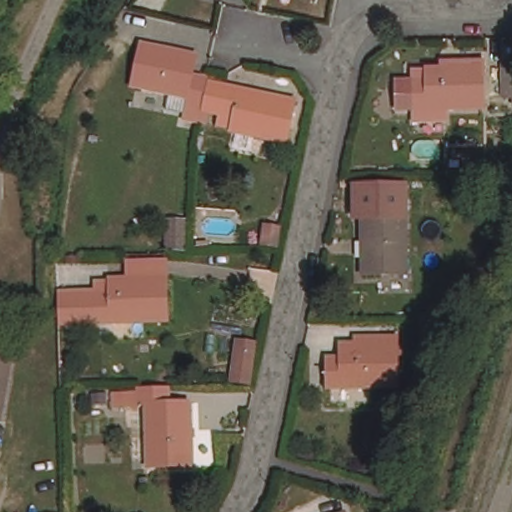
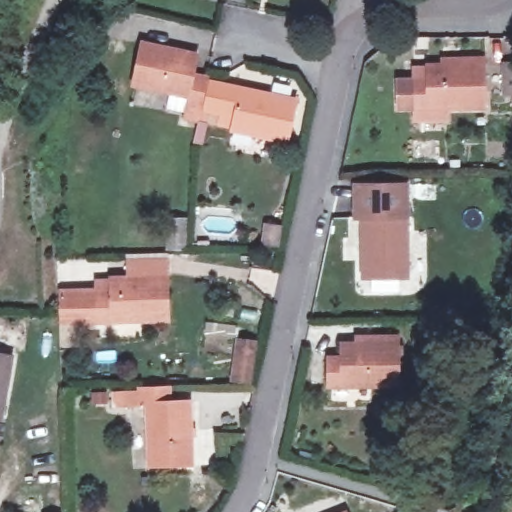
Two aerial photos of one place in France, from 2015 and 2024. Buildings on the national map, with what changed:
unchanged [(176,109),(176,105),(160,102),(163,86),(124,80),(133,37),(188,46),(184,66),(197,69),(192,99),(190,111),(176,109)]
unchanged [(445,60),(445,54),(459,54),(459,60),(484,60),(483,102),(411,105),(412,75),(413,75),(414,62),(427,62),(427,61),(445,60)]
unchanged [(503,87),(503,59),(512,58),(512,87),(503,87)]
unchanged [(278,130),(221,121),(221,119),(208,116),(210,104),(195,101),(200,75),(216,76),(286,88),(278,130)]
unchanged [(407,271),(364,273),(364,256),(359,257),(360,241),(365,241),(365,216),(357,217),(357,185),(356,179),(399,177),(399,200),(406,201),(407,271)]
unchanged [(178,232),(163,231),(165,205),(181,205),(178,232)]
unchanged [(258,228),(261,208),(273,209),(270,229),(258,228)]
unchanged [(166,320),(63,323),(63,292),(94,291),(95,281),(108,281),(108,278),(128,278),(128,260),(165,258),(165,276),(166,278),(166,320)]
unchanged [(443,310),(454,313),(448,333),(437,330),(443,310)]
unchanged [(226,379),(231,335),(252,339),(250,382),(226,379)]
unchanged [(402,386),(331,389),(331,360),(345,360),(346,345),(367,344),(367,336),(379,336),(379,343),(402,342),(402,386)]
unchanged [(4,410),(0,409),(0,344),(17,346),(4,410)]
unchanged [(171,401),(191,400),(191,465),(149,466),(150,403),(143,402),(142,407),(128,408),(113,408),(113,393),(128,393),(143,392),(142,388),(171,387),(171,401)]
unchanged [(56,507),(57,512),(40,512),(40,508),(56,507)]
unchanged [(357,512),(344,512),(356,507),(357,512)]

